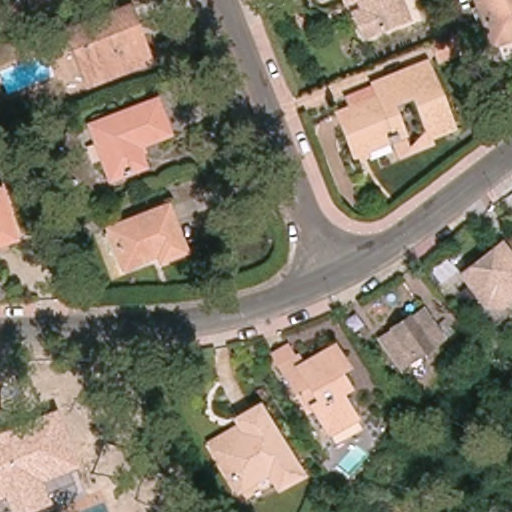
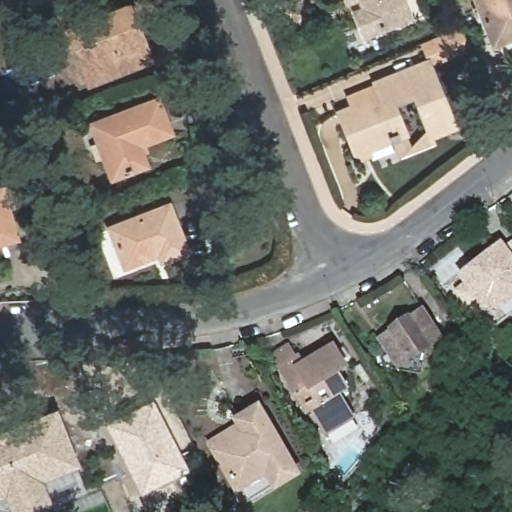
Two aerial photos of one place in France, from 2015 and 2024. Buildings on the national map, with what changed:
unchanged [(347,4),(345,0),(358,0),(347,4)]
unchanged [(410,18),(373,33),(359,0),(403,0),(410,18)]
unchanged [(477,0),(512,0),(512,37),(493,44),(477,0)]
unchanged [(141,65),(100,81),(86,43),(75,48),(67,29),(128,6),(135,24),(126,28),(141,65)]
unchanged [(473,51),(439,64),(430,43),(465,28),(473,51)]
unchanged [(408,134),(356,156),(338,113),(380,96),(375,83),(427,62),(454,128),(430,138),(415,102),(398,108),(408,134)]
unchanged [(140,147),(147,166),(111,180),(90,125),(157,99),(171,134),(140,147)]
unchanged [(0,244),(0,189),(1,188),(16,239),(0,244)]
unchanged [(187,251),(161,262),(159,256),(125,269),(109,228),(169,204),(187,251)]
unchanged [(486,305),(461,274),(503,242),(512,254),(512,299),(501,308),(486,305)]
unchanged [(445,337),(398,369),(378,339),(425,307),(445,337)]
unchanged [(348,383),(340,388),(355,413),(328,428),(312,400),(318,396),(315,391),(303,398),(274,349),(288,341),(300,361),(334,340),(348,361),(340,366),(348,383)]
new [(106,424),(154,399),(189,470),(141,495),(106,424)]
unchanged [(304,469),(283,482),(274,467),(244,485),(222,450),(253,431),(243,414),(264,402),(304,469)]
unchanged [(72,484),(45,494),(49,504),(28,512),(8,512),(7,509),(0,512),(0,431),(55,409),(76,466),(66,470),(72,484)]

